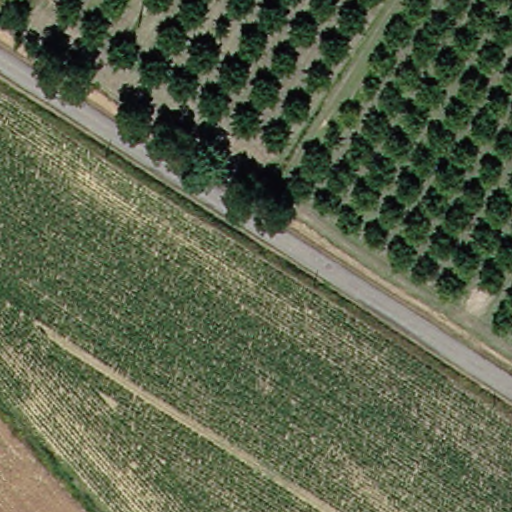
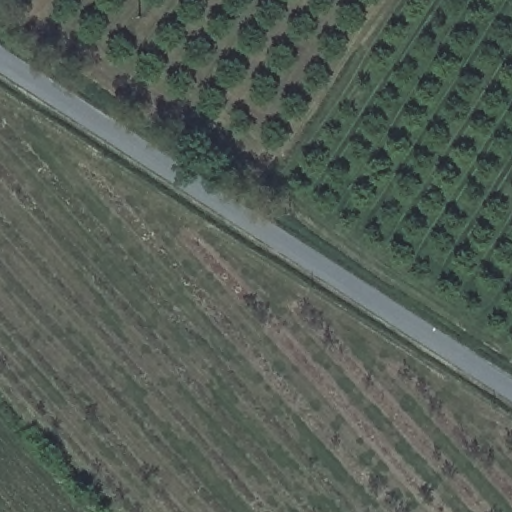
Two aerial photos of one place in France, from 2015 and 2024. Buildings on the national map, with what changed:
[]

